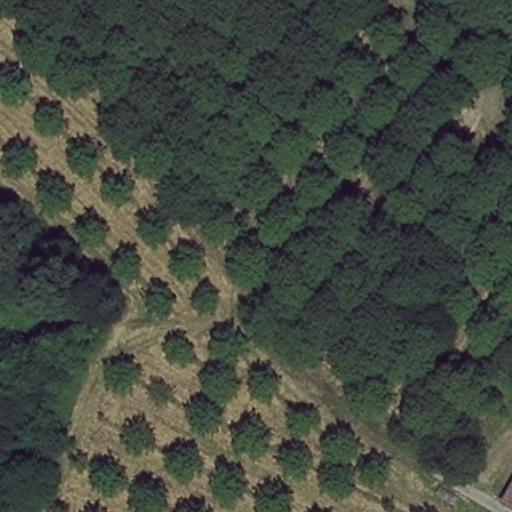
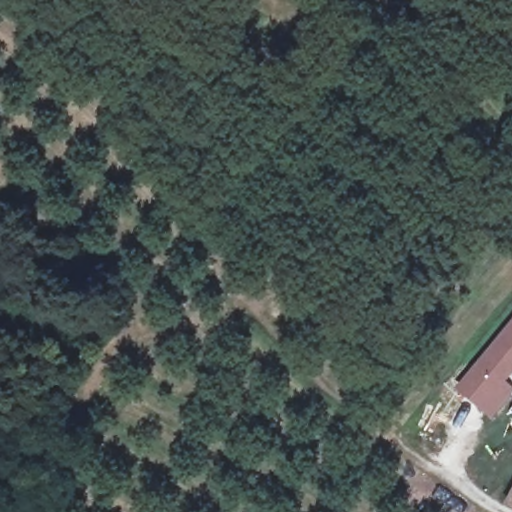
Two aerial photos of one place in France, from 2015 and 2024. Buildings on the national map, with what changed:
new [(491,419),(453,388),(512,317),(512,372),(505,381),(512,387),(512,393),(491,419)]
demolished [(509,427),(512,429),(512,459),(499,452),(509,427)]
unchanged [(502,499),(512,482),(512,505),(502,499)]

